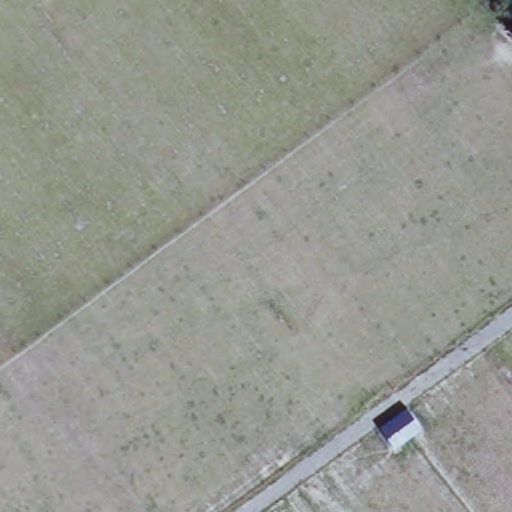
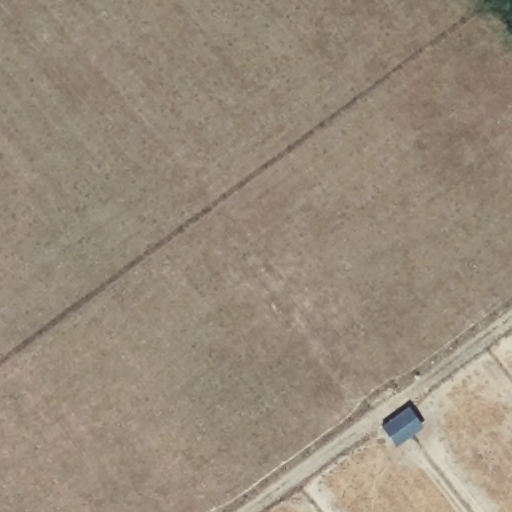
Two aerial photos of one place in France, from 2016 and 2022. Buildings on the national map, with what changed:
unchanged [(410,408),(423,428),(395,447),(382,427),(410,408)]

